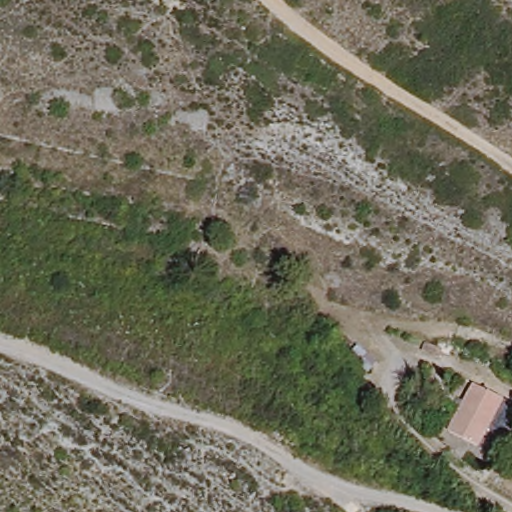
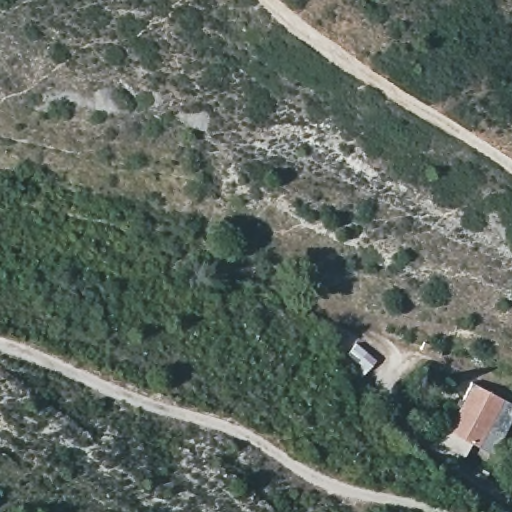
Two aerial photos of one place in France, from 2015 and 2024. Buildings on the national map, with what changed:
unchanged [(447,423),(469,380),(498,396),(512,404),(512,405),(503,423),(492,446),(447,423)]

